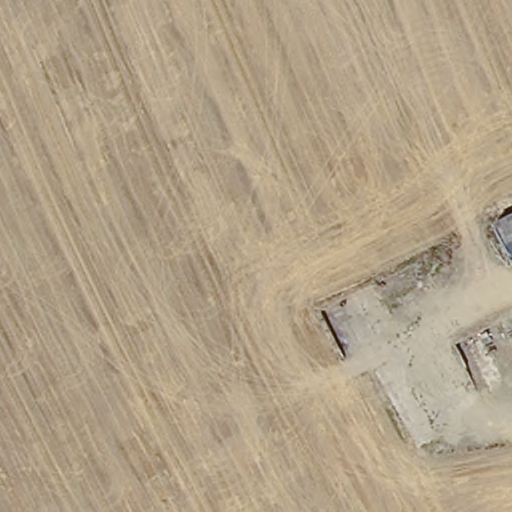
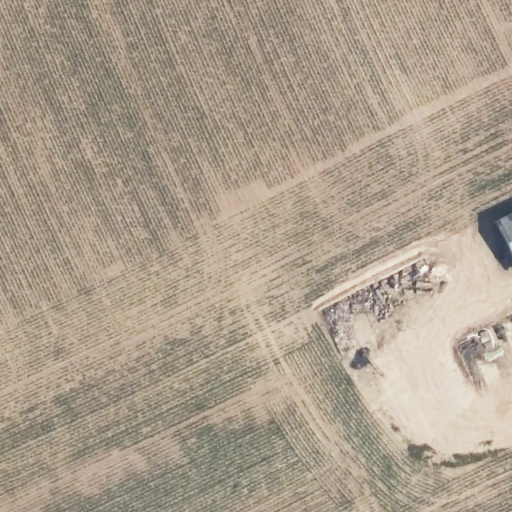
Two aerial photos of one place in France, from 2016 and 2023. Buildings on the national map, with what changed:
unchanged [(512,216),(512,263),(492,225),(512,216)]

